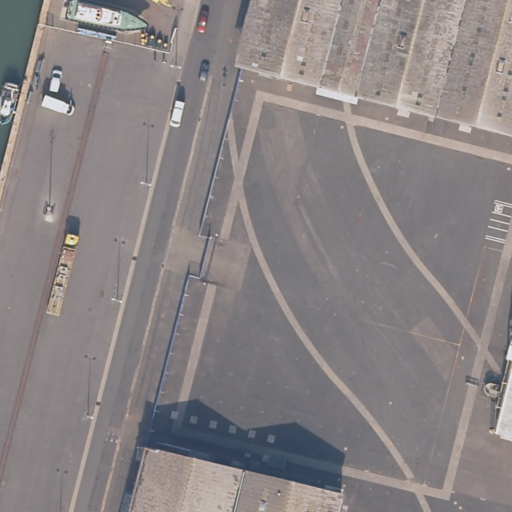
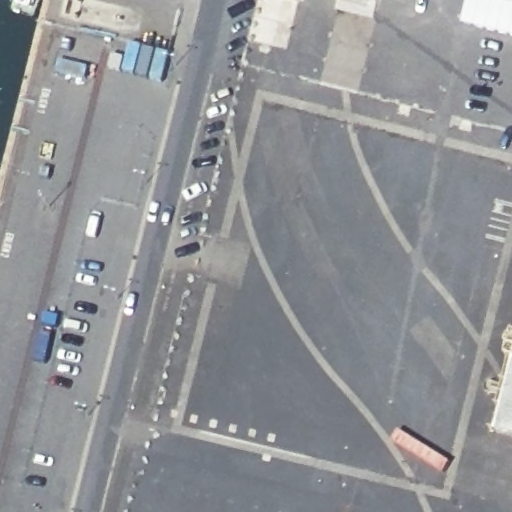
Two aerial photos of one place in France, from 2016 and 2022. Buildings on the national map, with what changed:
demolished [(512,0),(512,133),(234,64),(251,0),(512,0)]
new [(509,357),(501,355),(508,330),(512,331),(512,438),(490,432),(509,357)]
demolished [(509,357),(512,348),(512,438),(490,432),(509,357)]
demolished [(144,445),(341,495),(337,512),(127,512),(144,445)]

